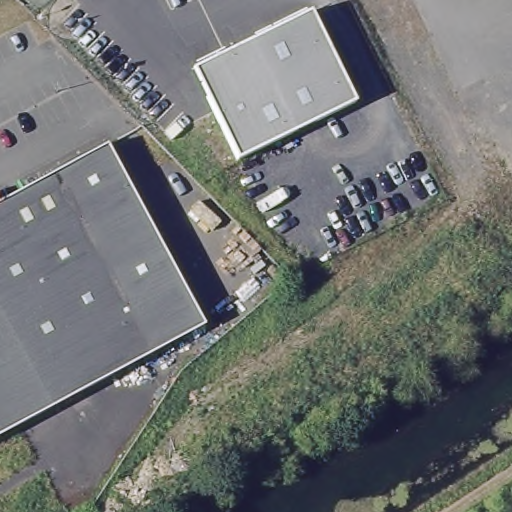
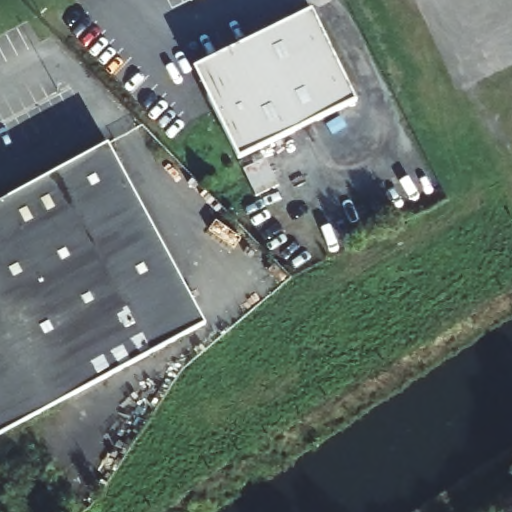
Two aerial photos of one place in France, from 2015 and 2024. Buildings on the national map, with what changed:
unchanged [(356,101),(238,159),(194,68),(311,10),(356,101)]
unchanged [(103,143),(208,316),(0,438),(0,202),(103,143)]

